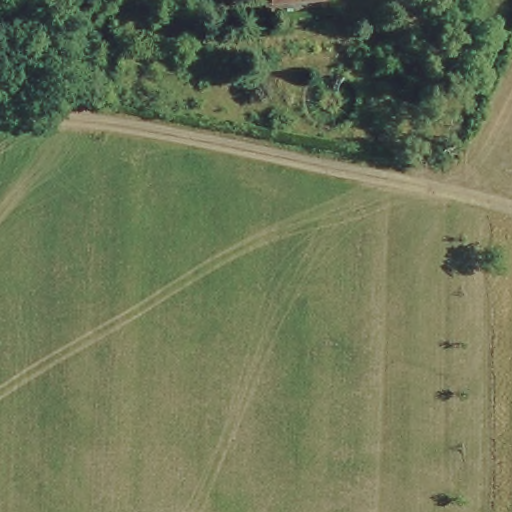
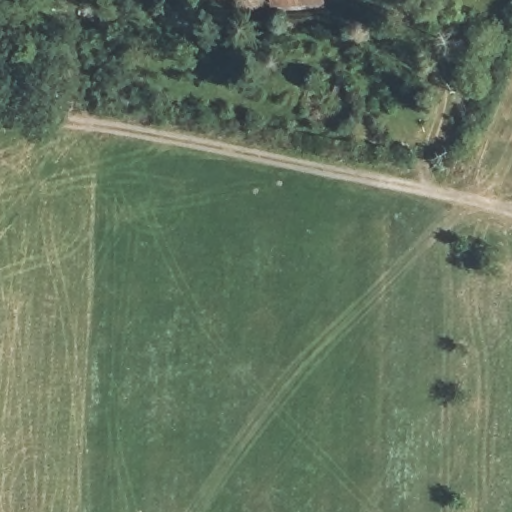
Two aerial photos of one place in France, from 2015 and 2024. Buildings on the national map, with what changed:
unchanged [(270,5),(270,0),(328,0),(328,2),(270,5)]

